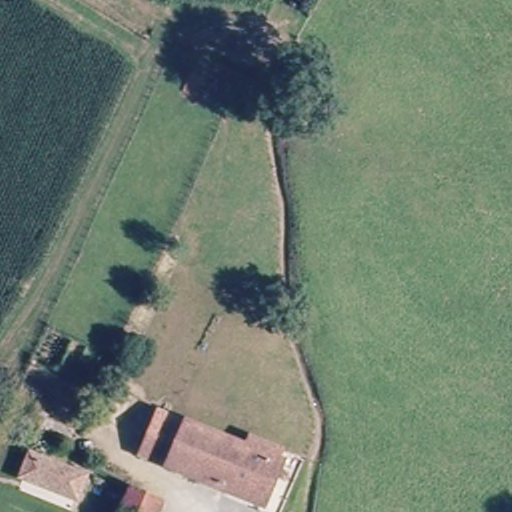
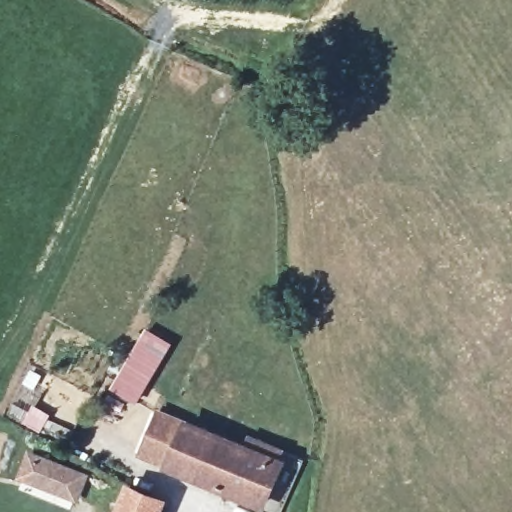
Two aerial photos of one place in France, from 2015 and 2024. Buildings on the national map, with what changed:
new [(147,330),(173,345),(137,405),(112,389),(147,330)]
unchanged [(166,457),(139,444),(159,405),(186,417),(166,457)]
unchanged [(264,503),(166,457),(186,417),(285,464),(264,503)]
unchanged [(90,474),(80,502),(17,479),(28,451),(90,474)]
unchanged [(163,504),(159,512),(117,512),(129,487),(163,504)]
demolished [(36,494),(57,505),(54,512),(28,512),(36,494)]

